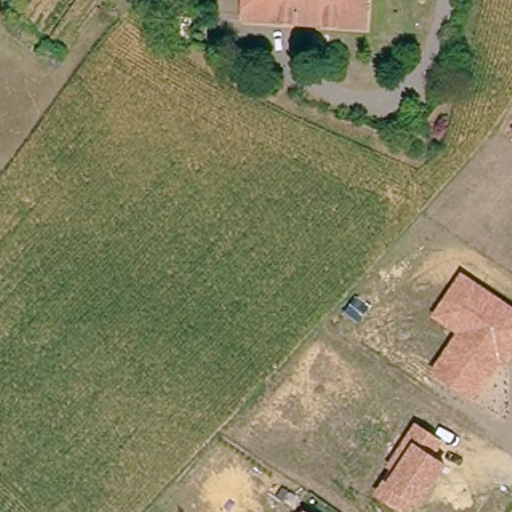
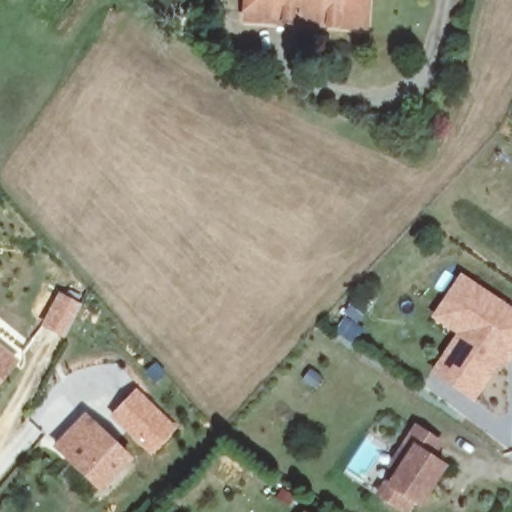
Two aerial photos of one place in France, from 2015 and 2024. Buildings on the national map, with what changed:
unchanged [(367,33),(344,32),(278,25),(244,22),(246,0),(368,0),(367,33)]
unchanged [(512,308),(512,358),(505,368),(499,365),(477,397),(474,405),(431,373),(455,335),(431,317),(461,275),(512,308)]
new [(80,302),(64,337),(40,327),(58,291),(80,302)]
new [(0,385),(0,344),(19,360),(0,385)]
new [(109,416),(136,388),(178,428),(151,456),(109,416)]
new [(133,458),(100,492),(52,447),(85,412),(133,458)]
unchanged [(447,465),(421,508),(414,503),(408,512),(398,512),(374,495),(388,474),(384,470),(413,425),(441,442),(442,444),(436,458),(447,465)]
unchanged [(307,512),(303,512),(304,510),(307,512)]

